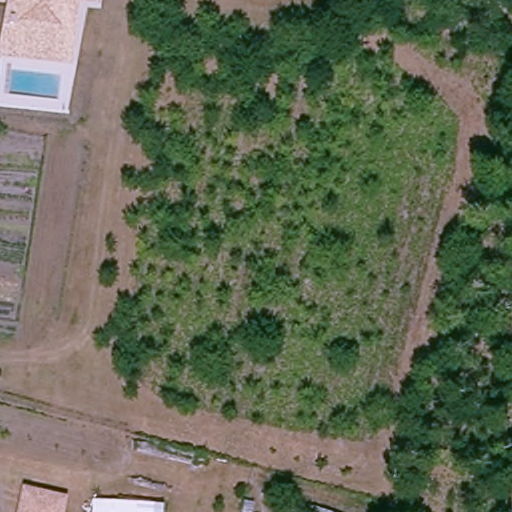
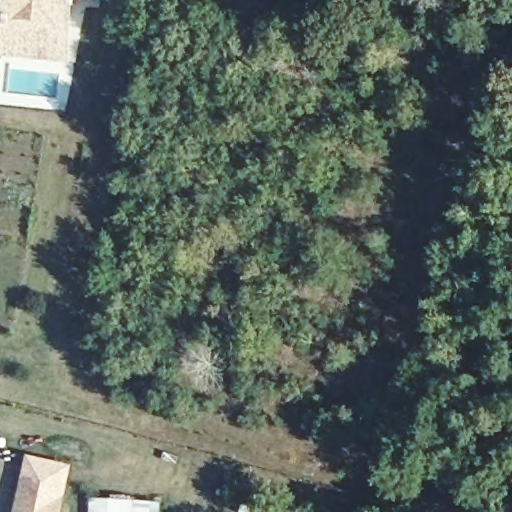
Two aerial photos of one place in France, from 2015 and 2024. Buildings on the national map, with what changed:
unchanged [(2,41),(9,0),(6,0),(95,0),(94,5),(73,2),(71,11),(68,10),(61,51),(59,64),(0,54),(2,41)]
new [(28,455),(71,464),(63,498),(58,497),(19,489),(28,455)]
unchanged [(19,489),(58,497),(55,512),(14,512),(19,489)]
unchanged [(135,512),(88,512),(89,498),(135,503),(135,512)]

